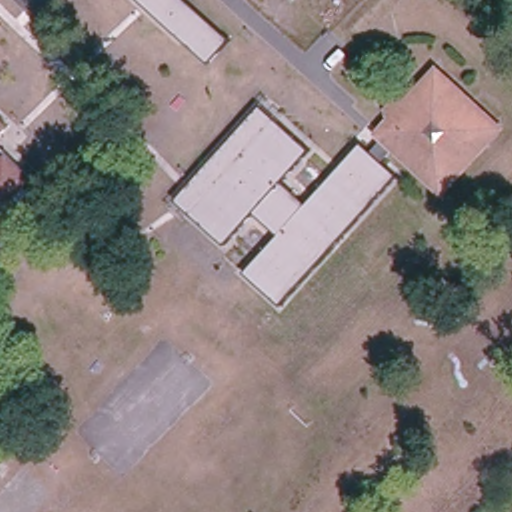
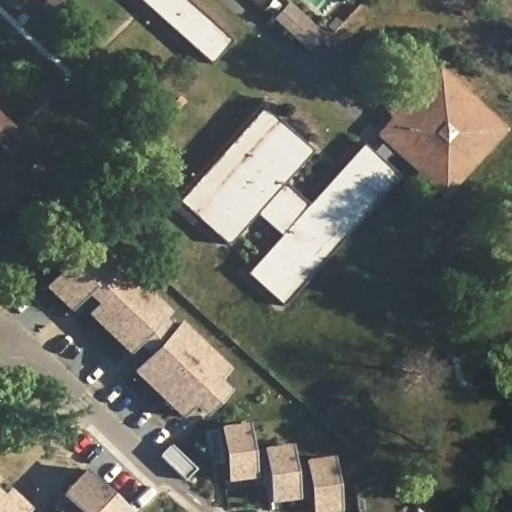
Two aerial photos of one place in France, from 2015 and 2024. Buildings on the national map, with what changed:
unchanged [(210,62),(141,0),(189,0),(230,39),(210,62)]
unchanged [(437,72),(498,129),(442,190),(381,134),(395,119),(390,110),(396,104),(405,107),(437,72)]
unchanged [(280,181),(305,205),(360,143),(397,173),(282,305),(246,273),(280,235),(255,213),(226,245),(176,200),(261,106),(309,150),(280,181)]
unchanged [(0,138),(0,114),(12,125),(0,138)]
unchanged [(6,207),(0,201),(0,145),(34,177),(6,207)]
new [(91,302),(82,292),(65,310),(38,285),(91,229),(119,255),(113,261),(165,309),(161,314),(171,323),(144,351),(133,343),(124,352),(83,312),(91,302)]
new [(227,366),(215,378),(225,385),(201,413),(190,405),(178,417),(127,369),(144,351),(171,323),(176,317),(227,366)]
new [(248,450),(251,476),(222,480),(220,462),(209,463),(206,430),(216,430),(215,423),(245,421),(248,450)]
new [(290,463),(294,495),(294,497),(265,500),(263,482),(252,484),(251,476),(248,450),(259,450),(258,445),(288,441),(290,463)]
new [(317,512),(306,512),(304,494),(294,495),(290,463),(300,462),(299,457),(328,453),(337,509),(317,512)]
new [(57,493),(83,468),(129,512),(67,512),(71,507),(57,493)]
new [(26,506),(20,512),(0,512),(0,489),(4,485),(26,506)]
new [(59,512),(52,512),(55,508),(59,512)]

